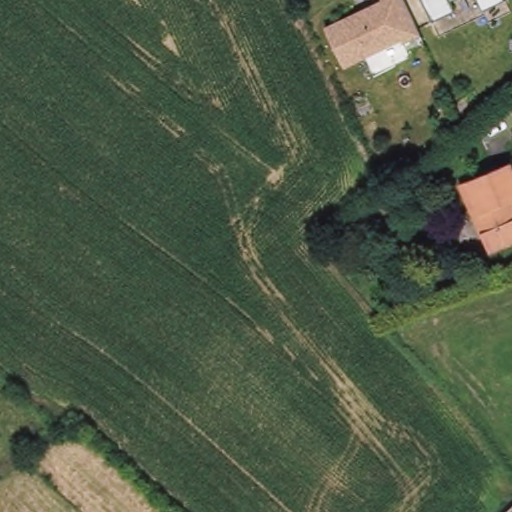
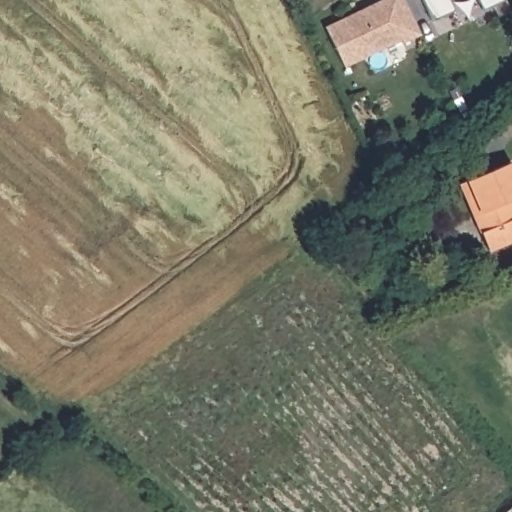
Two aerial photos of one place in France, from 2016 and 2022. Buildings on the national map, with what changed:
unchanged [(398,40),(344,67),(325,27),(382,0),(404,0),(421,34),(401,45),(398,40)]
unchanged [(431,22),(421,0),(450,0),(454,11),(431,22)]
unchanged [(483,10),(479,0),(504,0),(505,1),(483,10)]
unchanged [(509,162),(512,171),(512,205),(512,206),(512,246),(488,256),(458,183),(509,162)]

